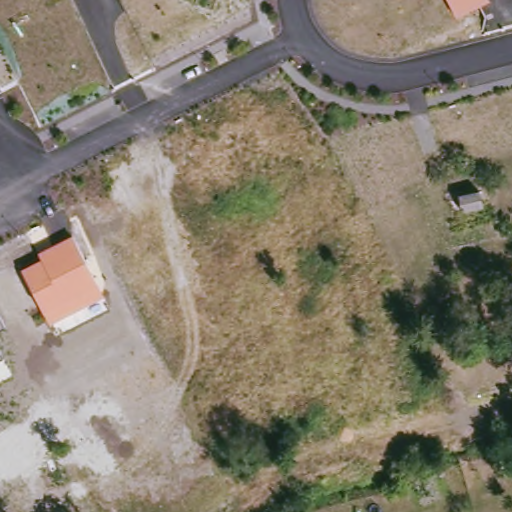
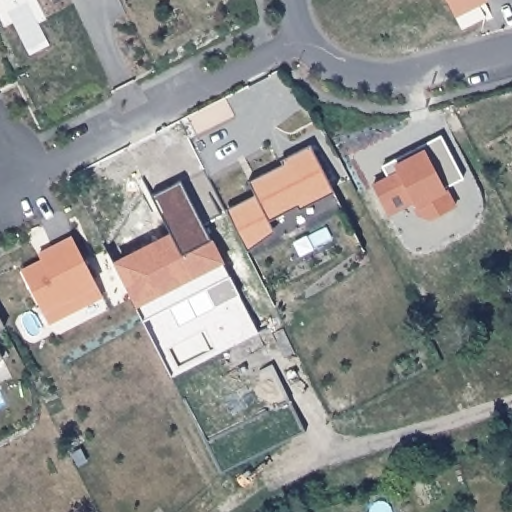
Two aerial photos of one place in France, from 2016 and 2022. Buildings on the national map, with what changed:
unchanged [(448,0),(491,0),(457,17),(448,0)]
new [(371,183),(386,176),(381,166),(440,135),(461,177),(445,186),(456,205),(430,220),(417,215),(416,206),(414,202),(387,215),(371,183)]
new [(227,210),(256,196),(248,181),(285,165),(282,160),(311,146),(333,192),(301,208),(296,206),(267,220),(272,231),(247,250),(227,210)]
new [(240,294),(215,307),(206,289),(143,321),(115,267),(173,238),(151,195),(181,180),(240,294)]
unchanged [(50,323),(43,313),(22,268),(40,257),(38,252),(71,236),(97,286),(103,297),(50,323)]
unchanged [(0,329),(0,320),(3,327),(0,329)]
unchanged [(0,353),(1,356),(0,357),(0,353)]

